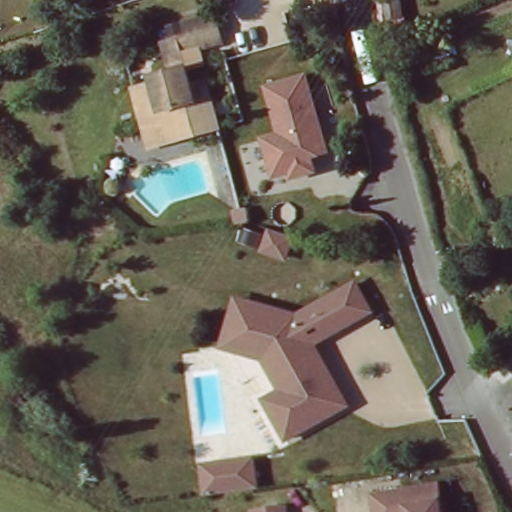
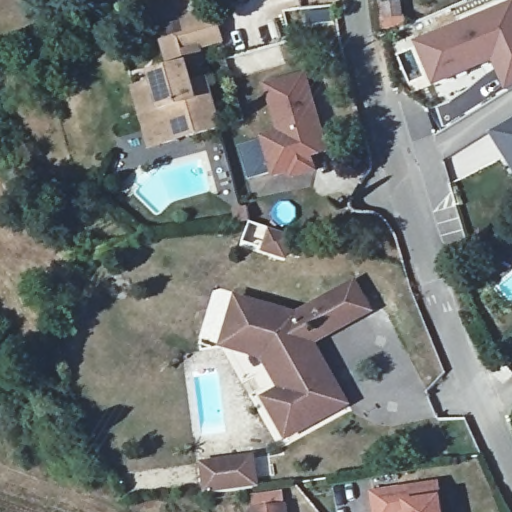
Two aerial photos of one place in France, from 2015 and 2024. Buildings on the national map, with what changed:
new [(512,87),(497,61),(445,88),(424,41),(512,1),(512,87)]
unchanged [(142,122),(131,84),(155,76),(154,72),(169,67),(162,40),(187,34),(181,15),(192,14),(214,12),(221,40),(183,50),(191,83),(207,77),(220,125),(173,137),(148,145),(142,122)]
unchanged [(308,72),(331,150),(315,156),(318,172),(293,179),(295,172),(276,177),(264,135),(277,129),(264,84),(308,72)]
new [(512,157),(496,130),(512,119),(512,157)]
new [(260,222),(282,230),(275,251),(253,243),(260,222)]
unchanged [(298,311),(357,278),(376,311),(317,346),(352,402),(289,440),(265,397),(277,388),(263,359),(222,346),(235,294),(298,311)]
unchanged [(253,456),(259,487),(207,494),(203,463),(253,456)]
unchanged [(441,484),(446,512),(380,512),(377,496),(441,484)]

